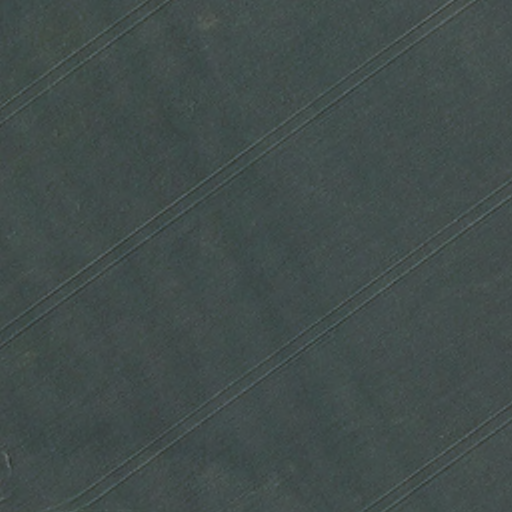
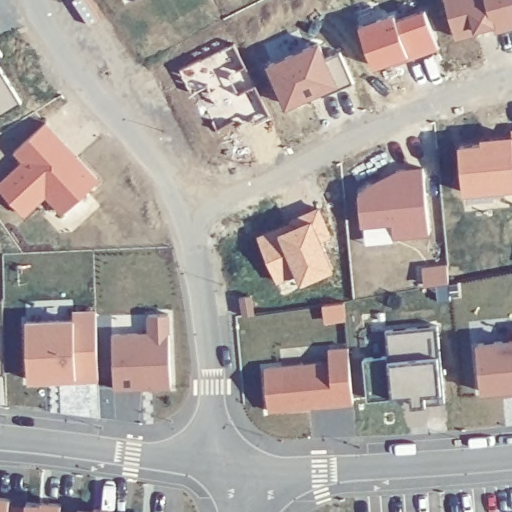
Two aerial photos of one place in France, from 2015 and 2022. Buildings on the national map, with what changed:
new [(498,29),(496,22),(480,27),(481,31),(459,36),(448,0),(512,0),(512,25),(498,29)]
new [(394,59),(376,65),(361,26),(397,14),(399,19),(427,9),(440,47),(411,57),(395,63),(394,59)]
new [(321,43),(328,58),(342,51),(356,82),(324,95),(321,88),(309,93),(309,95),(289,105),(271,64),(321,43)]
new [(235,46),(269,119),(256,125),(236,121),(217,133),(208,109),(198,113),(181,71),(235,46)]
new [(0,57),(0,47),(4,54),(0,57)]
new [(1,116),(0,114),(0,64),(24,101),(1,116)]
new [(16,151),(47,122),(68,145),(64,148),(75,160),(79,157),(101,180),(65,213),(48,195),(26,214),(0,187),(0,185),(26,160),(16,151)]
new [(493,144),(493,139),(512,137),(512,187),(466,191),(462,147),(493,144)]
new [(371,182),(389,181),(399,170),(426,167),(432,233),(396,237),(394,221),(364,224),(361,192),(371,182)]
new [(281,227),(284,232),(296,227),(293,220),(321,207),(333,235),(323,239),(335,268),(304,281),(300,272),(279,281),(260,237),(281,227)]
new [(447,266),(448,285),(423,288),(422,269),(447,266)]
new [(253,295),(256,312),(246,315),(243,296),(253,295)]
new [(8,375),(0,375),(0,299),(6,299),(8,375)]
new [(28,322),(76,321),(76,312),(98,312),(101,379),(78,380),(78,378),(31,380),(28,322)]
new [(114,333),(151,332),(151,313),(171,313),(173,388),(115,389),(114,333)]
new [(366,357),(389,356),(387,328),(439,323),(447,402),(414,404),(414,395),(370,397),(366,357)]
new [(512,340),(512,388),(483,389),(478,343),(512,340)]
new [(268,366),(332,361),(331,348),(349,346),(356,402),(271,409),(268,366)]
new [(11,505),(28,506),(29,504),(43,504),(43,503),(61,504),(61,511),(70,512),(0,512),(0,497),(12,497),(11,505)]
new [(79,510),(83,510),(114,511),(114,512),(79,512),(79,510)]

